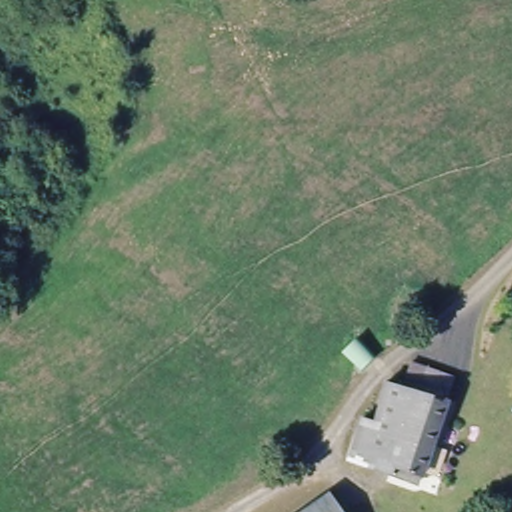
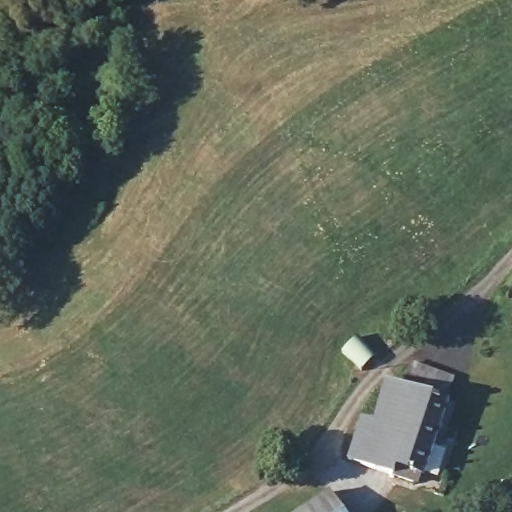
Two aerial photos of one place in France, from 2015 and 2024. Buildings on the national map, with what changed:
unchanged [(381,358),(363,374),(343,356),(360,337),(381,358)]
unchanged [(458,384),(424,483),(398,477),(398,470),(379,462),(377,468),(350,463),(366,422),(375,424),(387,392),(406,388),(409,379),(413,368),(429,374),(458,384)]
unchanged [(327,486),(346,512),(311,512),(304,501),(327,486)]
unchanged [(311,512),(287,512),(304,501),(311,512)]

